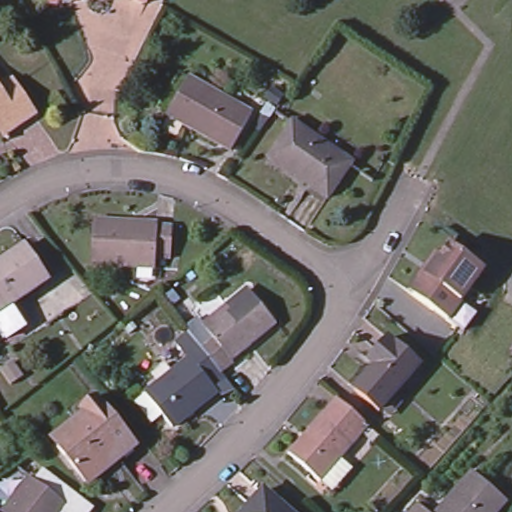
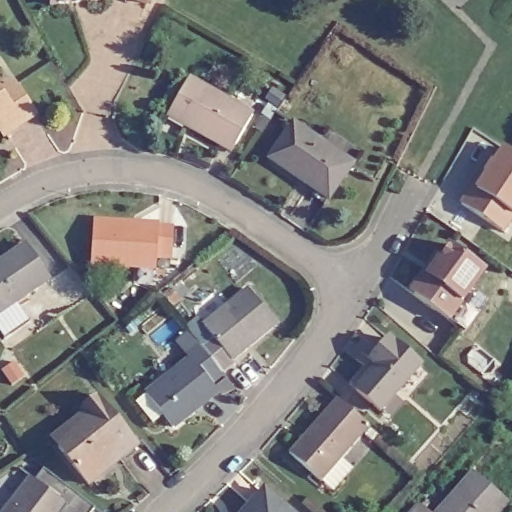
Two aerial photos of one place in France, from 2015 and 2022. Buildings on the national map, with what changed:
unchanged [(52,1),(51,0),(63,0),(52,1)]
unchanged [(188,78),(252,120),(230,156),(165,114),(188,78)]
unchanged [(13,81),(35,111),(6,129),(0,121),(0,85),(2,88),(13,81)]
unchanged [(280,109),(277,114),(268,109),(276,96),(285,101),(280,109)]
unchanged [(295,122),(357,163),(335,199),(270,158),(295,122)]
new [(504,233),(458,203),(477,173),(480,174),(489,160),(492,162),(502,147),(512,154),(512,221),(504,233)]
unchanged [(90,265),(92,224),(156,226),(156,230),(173,230),(172,259),(155,258),(155,267),(90,265)]
unchanged [(0,327),(0,298),(0,245),(17,233),(42,271),(8,293),(22,312),(0,327)]
unchanged [(488,265),(455,312),(418,287),(420,280),(431,264),(440,251),(445,254),(455,240),(488,265)]
unchanged [(147,386),(190,353),(186,347),(202,336),(202,337),(205,340),(218,331),(210,321),(255,288),(280,321),(235,353),(238,358),(226,368),(228,371),(236,381),(221,392),(217,389),(172,421),(165,411),(152,420),(133,395),(147,386)]
unchanged [(389,413),(382,406),(380,409),(347,381),(387,334),(420,361),(395,391),(402,398),(389,413)]
unchanged [(93,419),(85,408),(99,396),(137,441),(90,482),(61,446),(93,419)]
unchanged [(319,486),(310,479),(279,453),(330,397),(360,424),(327,462),(335,470),(319,486)]
unchanged [(37,469),(71,495),(67,501),(59,512),(6,512),(32,476),(37,469)]
unchanged [(504,504),(497,512),(435,512),(470,473),(504,504)]
unchanged [(287,512),(240,512),(261,489),(287,512)]
unchanged [(420,512),(412,512),(416,508),(420,512)]

